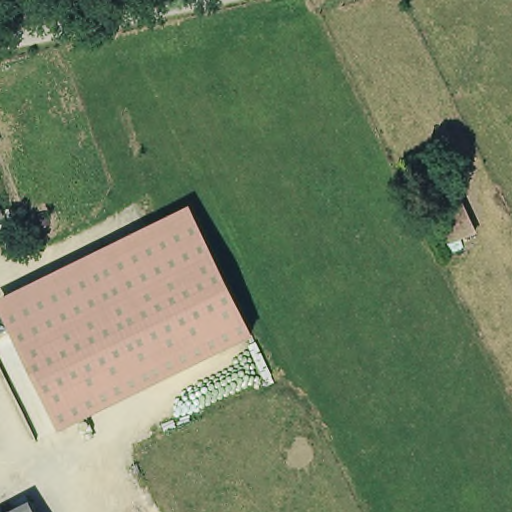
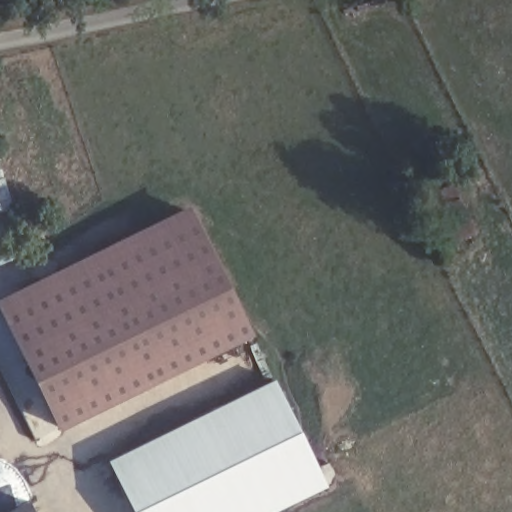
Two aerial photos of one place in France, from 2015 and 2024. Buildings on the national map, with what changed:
unchanged [(450,238),(435,212),(447,205),(440,186),(457,177),(474,227),(450,238)]
unchanged [(59,430),(0,311),(0,297),(190,205),(253,335),(59,430)]
new [(275,383),(325,488),(279,512),(133,512),(110,464),(275,383)]
unchanged [(37,512),(9,512),(32,501),(37,512)]

